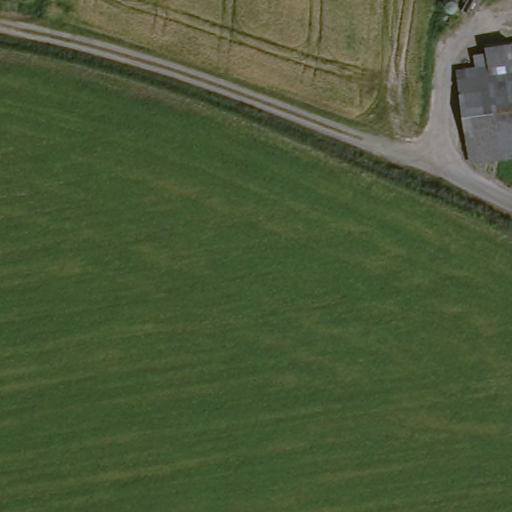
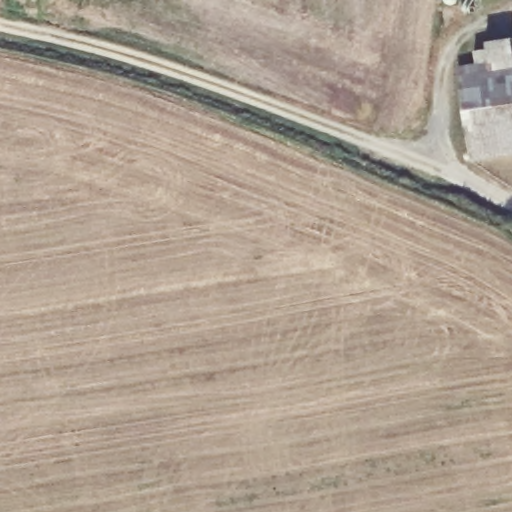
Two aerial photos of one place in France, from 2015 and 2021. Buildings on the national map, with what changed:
unchanged [(484,73),(482,49),(512,46),(512,69),(484,73)]
unchanged [(454,77),(484,73),(512,69),(512,161),(466,167),(456,92),(454,77)]

